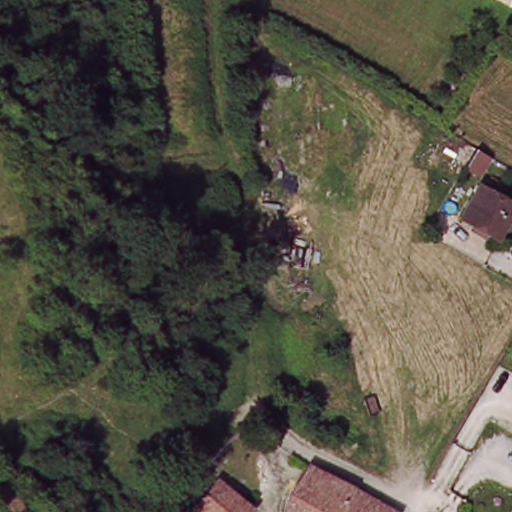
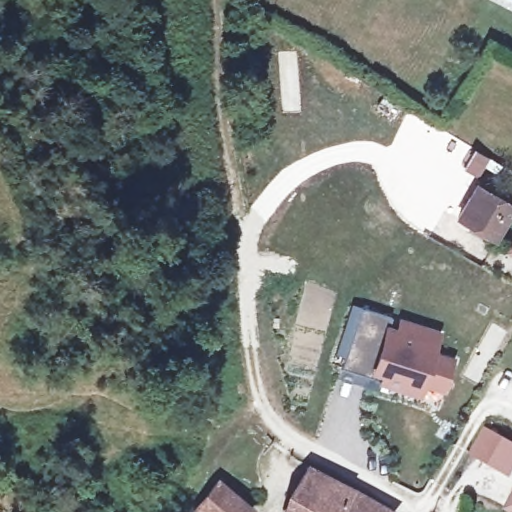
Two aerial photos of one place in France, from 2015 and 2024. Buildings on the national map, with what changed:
unchanged [(494,246),(452,231),(471,187),(512,208),(512,218),(494,246)]
unchanged [(508,255),(512,248),(512,257),(508,255)]
new [(440,392),(422,385),(418,397),(376,383),(378,376),(370,373),(370,377),(341,368),(360,307),(390,316),(388,324),(395,326),(397,317),(440,330),(433,350),(453,357),(440,392)]
new [(511,478),(470,455),(485,427),(512,443),(512,477),(511,478)]
unchanged [(280,494),(283,496),(287,490),(303,463),(347,488),(392,511),(391,512),(283,512),(280,494)]
unchanged [(213,488),(248,503),(244,512),(203,512),(213,488)]
unchanged [(509,510),(512,505),(512,512),(509,510)]

